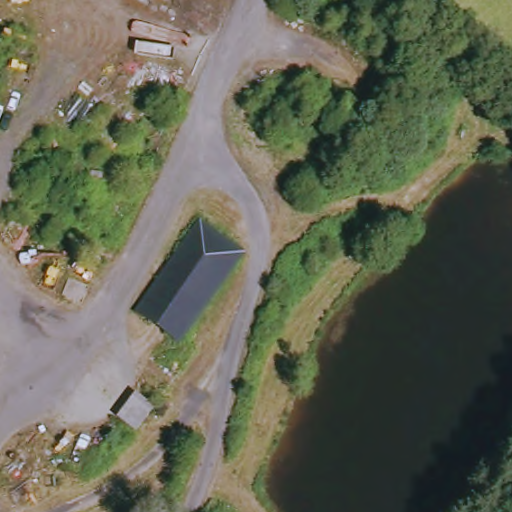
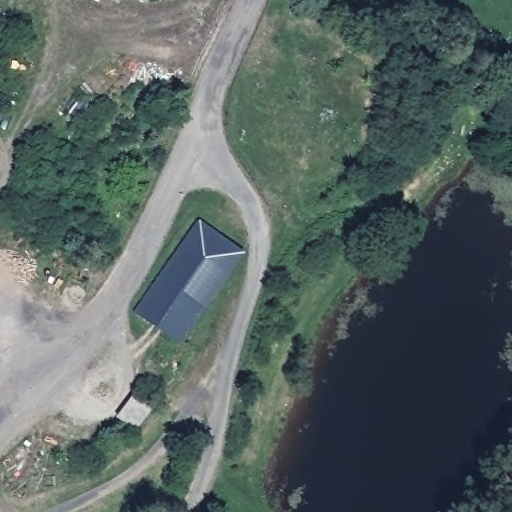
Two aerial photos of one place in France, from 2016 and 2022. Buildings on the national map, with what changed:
unchanged [(188,341),(146,313),(211,222),(249,251),(188,341)]
unchanged [(156,421),(138,443),(124,432),(140,408),(156,421)]

